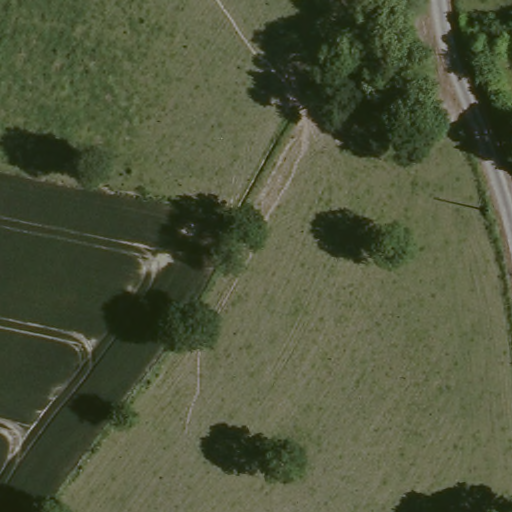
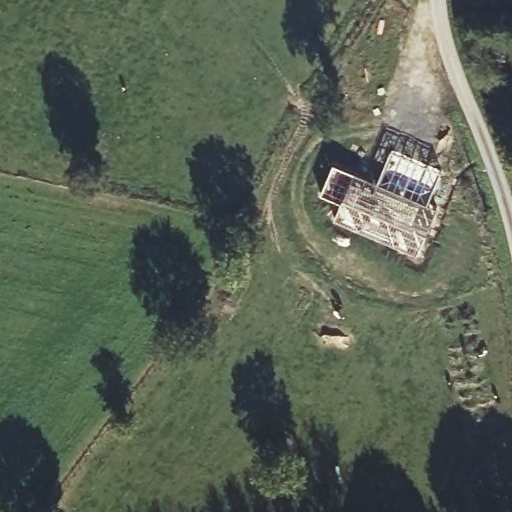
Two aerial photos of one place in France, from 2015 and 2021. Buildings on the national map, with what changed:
new [(333,167),(377,186),(391,154),(441,175),(427,207),(436,211),(416,258),(333,222),(341,206),(320,198),(333,167)]

